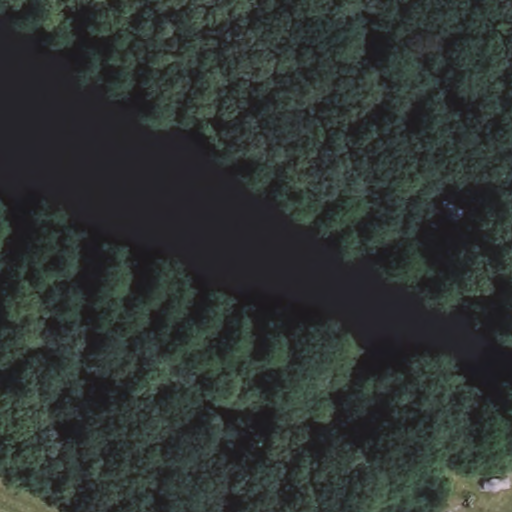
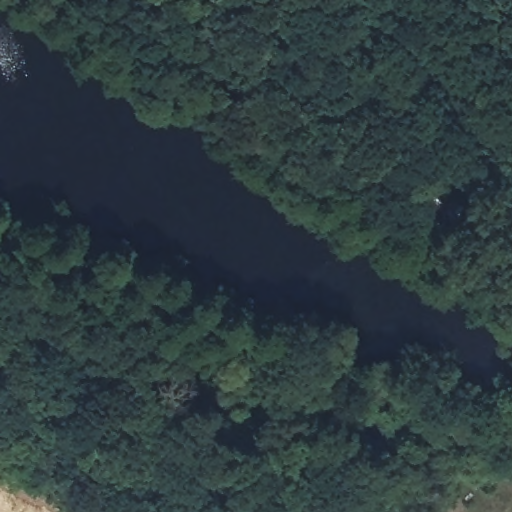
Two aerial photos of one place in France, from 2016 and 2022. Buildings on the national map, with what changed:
unchanged [(389,503),(425,449),(438,460),(402,512),(389,503)]

